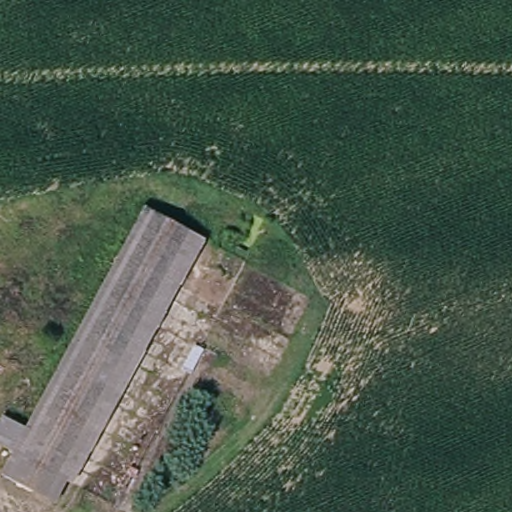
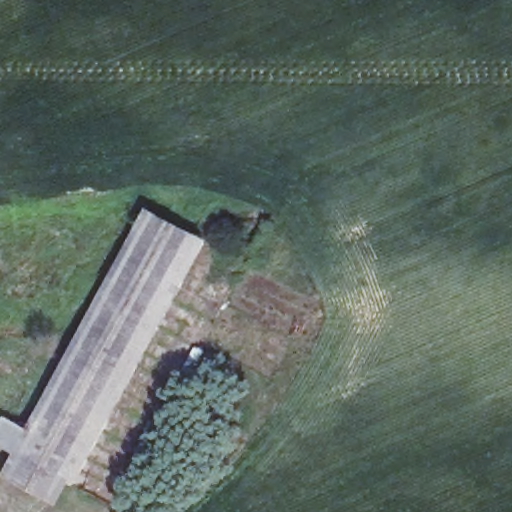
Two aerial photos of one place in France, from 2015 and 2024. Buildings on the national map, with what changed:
unchanged [(75,483),(10,450),(0,445),(0,435),(7,421),(33,434),(149,209),(202,236),(75,483)]
unchanged [(10,450),(75,483),(59,506),(17,480),(15,484),(0,476),(10,450)]

